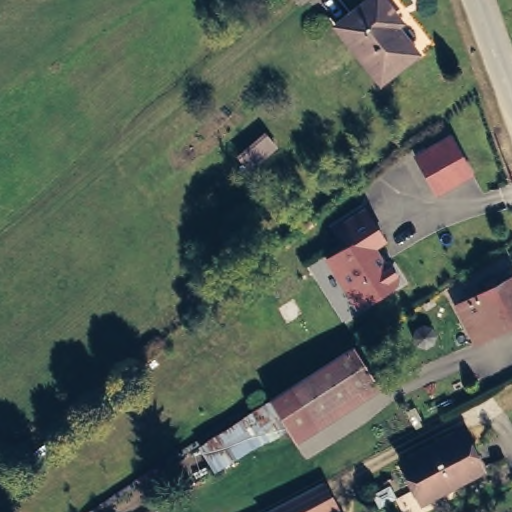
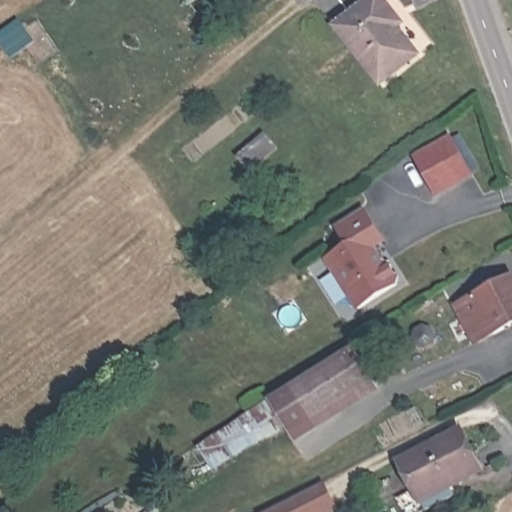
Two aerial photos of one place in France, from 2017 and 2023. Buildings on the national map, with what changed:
unchanged [(340,20),(366,0),(378,0),(391,15),(402,30),(395,37),(411,58),(377,86),(345,44),(331,28),(340,20)]
unchanged [(474,175),(434,197),(412,156),(453,135),(474,175)]
unchanged [(385,240),(375,247),(384,265),(390,261),(403,282),(352,312),(321,260),(343,247),(332,226),(367,207),(385,240)]
unchanged [(451,321),(467,313),(462,302),(490,289),(487,283),(496,278),(499,284),(512,278),(512,326),(481,341),(464,350),(451,321)]
unchanged [(354,345),(382,387),(296,442),(287,426),(231,460),(216,435),(354,345)]
unchanged [(462,422),(482,464),(454,479),(458,488),(409,512),(408,512),(399,489),(414,481),(402,452),(462,422)]
unchanged [(335,504),(320,512),(244,512),(317,471),(335,504)]

